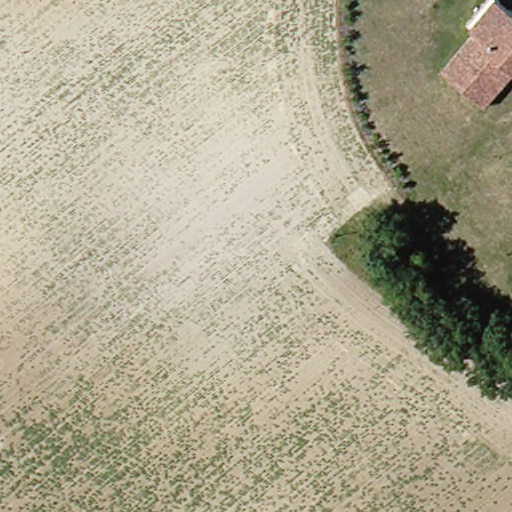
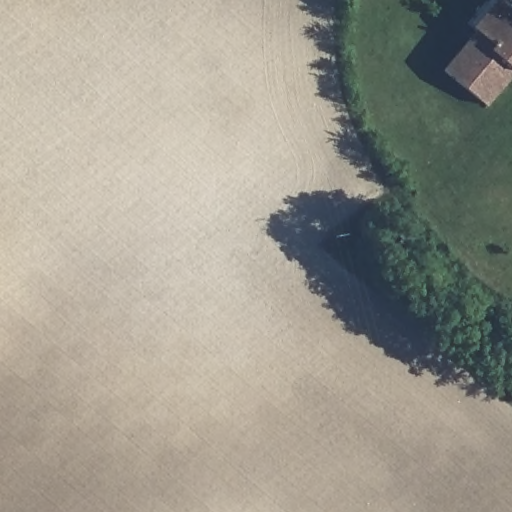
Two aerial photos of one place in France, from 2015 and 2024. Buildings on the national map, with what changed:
unchanged [(464,84),(444,67),(477,26),(469,19),(485,0),(508,0),(512,4),(512,29),(464,84)]
unchanged [(464,84),(512,29),(512,74),(487,103),(464,84)]

